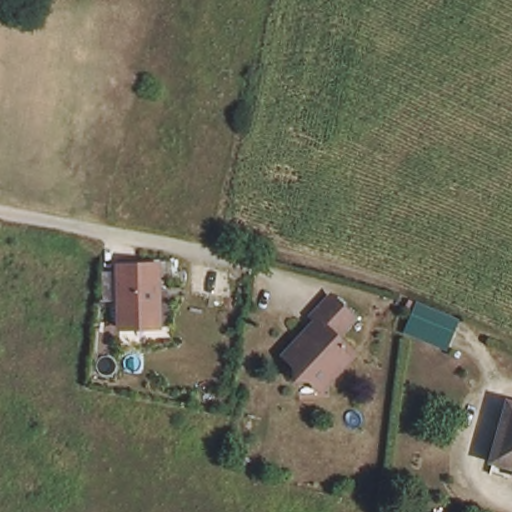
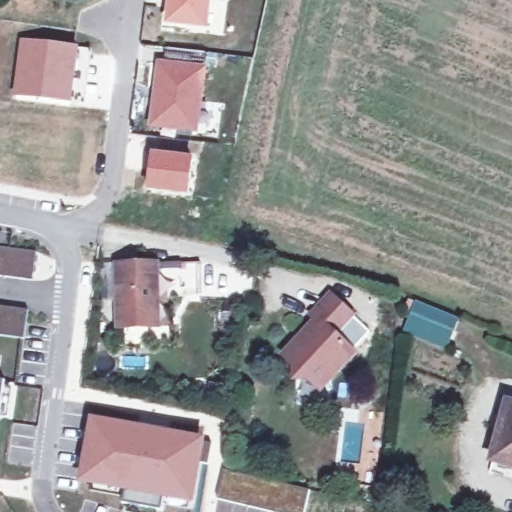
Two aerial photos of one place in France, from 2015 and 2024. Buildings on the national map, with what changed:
new [(161,0),(160,4),(145,1),(145,0),(161,0)]
new [(211,0),(209,29),(163,24),(167,0),(211,0)]
new [(19,37),(79,45),(72,102),(12,95),(19,37)]
new [(154,59),(165,60),(165,49),(219,54),(218,65),(205,64),(200,134),(147,127),(154,59)]
new [(153,151),(193,156),(188,195),(146,189),(153,151)]
new [(37,251),(33,281),(0,277),(0,246),(37,251)]
unchanged [(120,266),(159,265),(160,295),(155,295),(156,327),(123,328),(120,266)]
unchanged [(308,383),(293,385),(294,370),(283,360),(316,326),(310,321),(330,300),(355,321),(335,340),(353,355),(327,384),(319,393),(308,383)]
new [(447,350),(404,332),(417,300),(460,318),(455,331),(447,350)]
new [(30,310),(24,340),(0,336),(0,306),(30,310)]
new [(5,381),(0,416),(0,381),(5,381)]
new [(90,416),(206,437),(195,506),(165,500),(162,512),(150,512),(121,505),(124,493),(76,483),(90,416)]
unchanged [(512,419),(512,475),(499,470),(512,419)]
new [(222,465),(311,490),(305,512),(264,512),(215,497),(222,465)]
new [(215,497),(264,512),(212,512),(215,497)]

